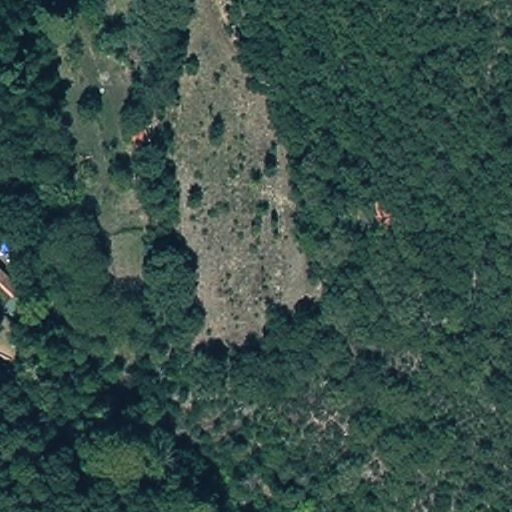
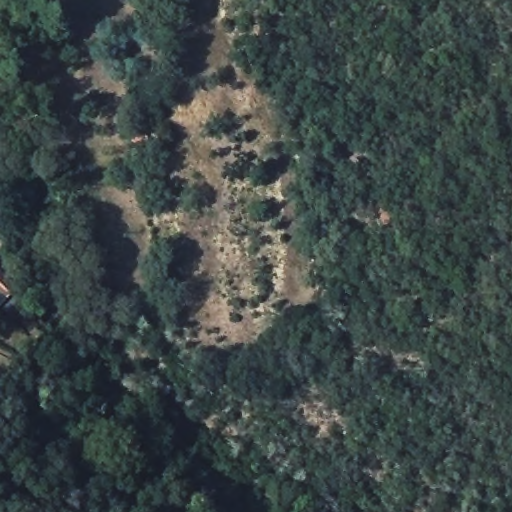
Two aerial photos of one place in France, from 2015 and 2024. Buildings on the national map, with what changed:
unchanged [(389,225),(374,228),(369,204),(384,199),(389,225)]
unchanged [(0,312),(0,280),(15,296),(0,312)]

